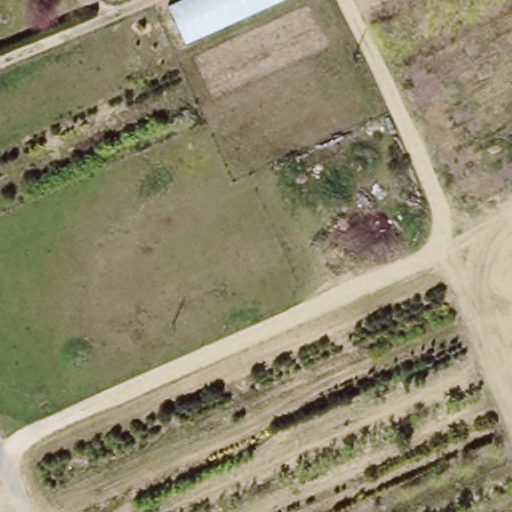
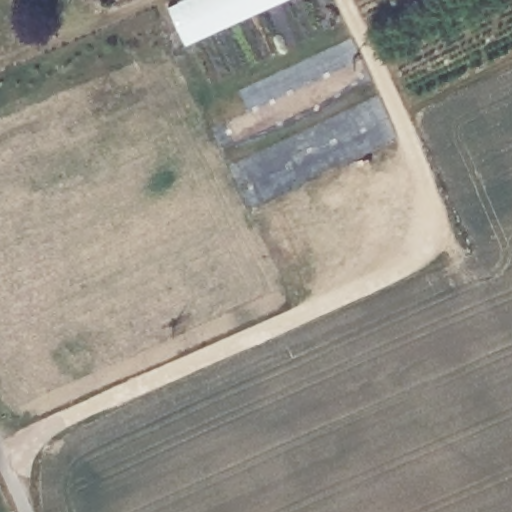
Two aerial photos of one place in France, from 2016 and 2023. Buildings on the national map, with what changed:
unchanged [(182,43),(166,4),(175,0),(274,0),(182,43)]

